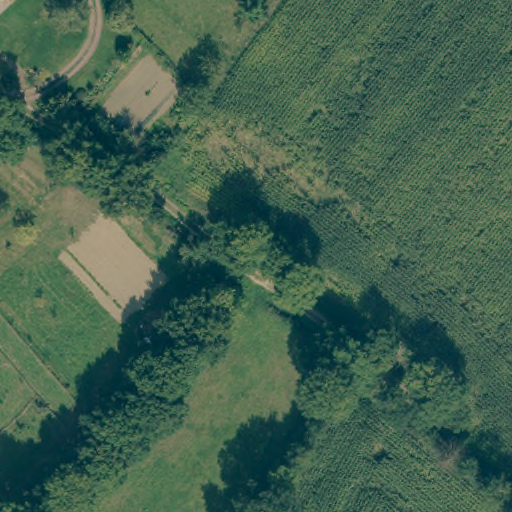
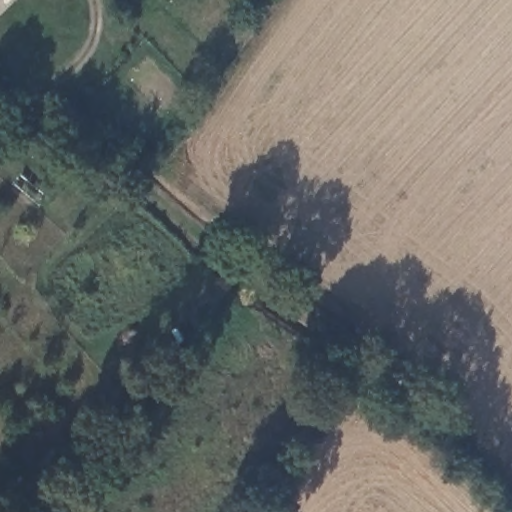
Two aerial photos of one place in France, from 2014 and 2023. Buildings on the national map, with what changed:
unchanged [(0,0),(1,0),(0,1),(0,0)]

